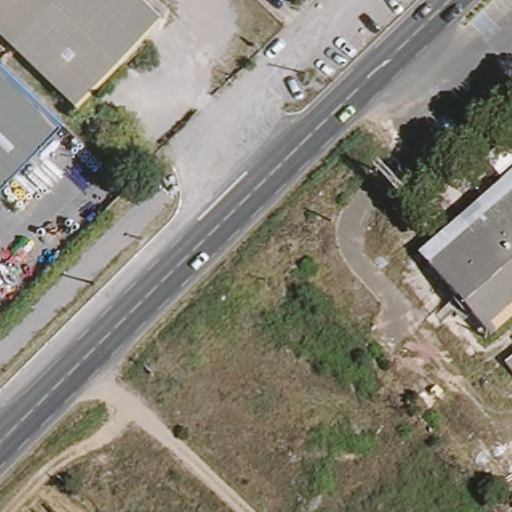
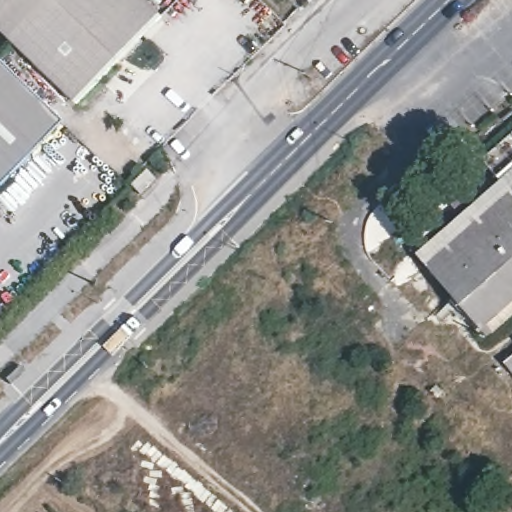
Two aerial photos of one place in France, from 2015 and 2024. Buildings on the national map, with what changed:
unchanged [(162,15),(81,101),(0,25),(0,0),(146,0),(162,15)]
unchanged [(58,126),(0,183),(0,69),(58,126)]
unchanged [(512,129),(512,171),(484,195),(463,171),(512,129)]
unchanged [(155,156),(165,166),(147,183),(137,174),(155,156)]
unchanged [(512,310),(488,330),(420,251),(484,195),(512,171),(512,310)]
unchanged [(512,362),(510,359),(512,357),(512,362)]

